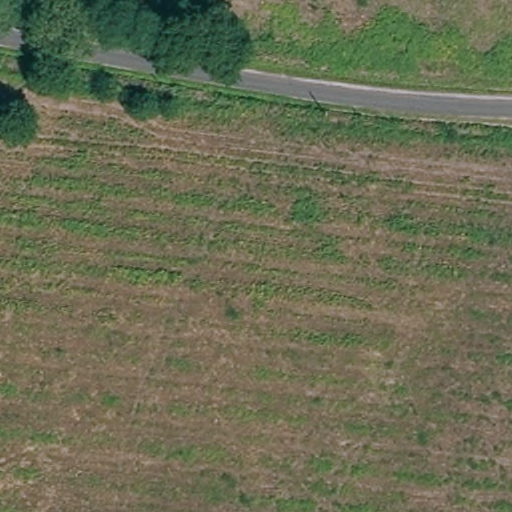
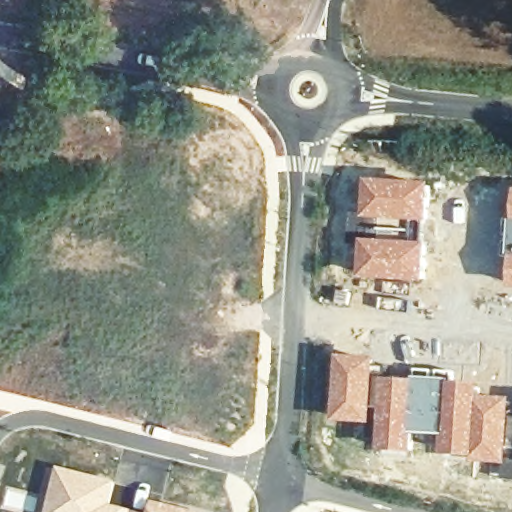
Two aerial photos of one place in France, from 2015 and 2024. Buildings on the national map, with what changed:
new [(368,177),(433,182),(429,223),(365,219),(368,177)]
new [(506,218),(512,218),(512,257),(510,258),(511,225),(506,224),(506,218)]
new [(364,239),(428,242),(425,284),(363,279),(364,239)]
new [(340,354),(379,357),(375,424),(335,421),(340,354)]
new [(384,377),(417,377),(414,435),(417,435),(413,454),(381,451),(384,377)]
new [(417,377),(452,380),(447,436),(443,436),(417,435),(414,435),(417,377)]
new [(447,436),(452,380),(485,386),(484,394),(474,460),(444,456),(443,436),(447,436)]
new [(503,479),(503,465),(474,460),(484,394),(512,397),(512,480),(503,479)]
new [(119,482),(113,503),(133,509),(132,512),(47,512),(59,466),(119,482)]
new [(204,512),(148,512),(153,499),(204,512)]
new [(144,512),(132,512),(133,509),(144,512)]

